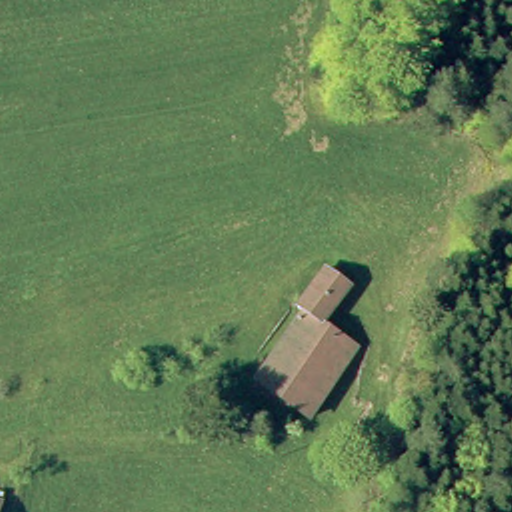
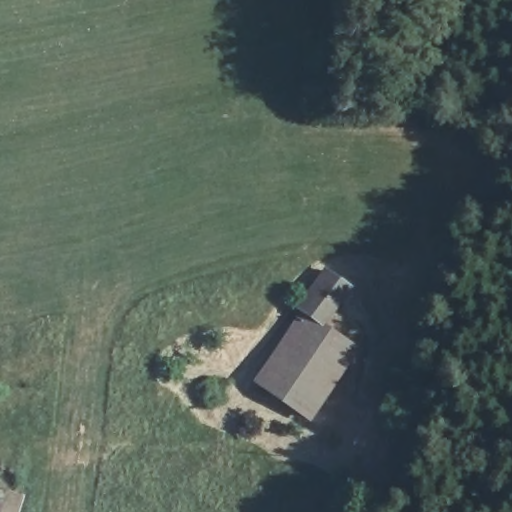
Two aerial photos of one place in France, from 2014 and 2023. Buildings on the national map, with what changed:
unchanged [(317,274),(353,300),(339,322),(333,331),(310,317),(296,307),(315,274),(317,274)]
unchanged [(333,331),(339,322),(369,340),(312,424),(259,391),(310,317),(333,331)]
unchanged [(0,512),(0,503),(5,505),(2,512),(0,512)]

